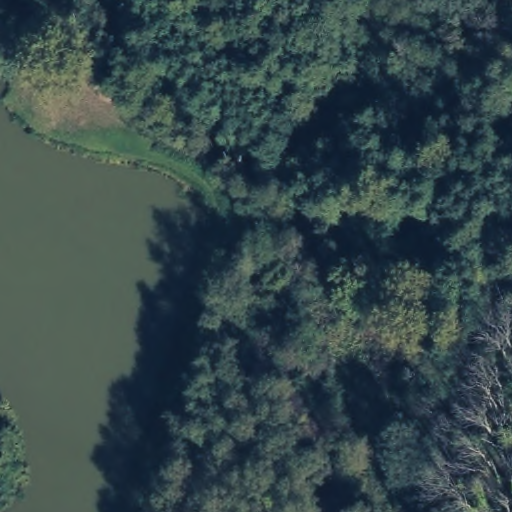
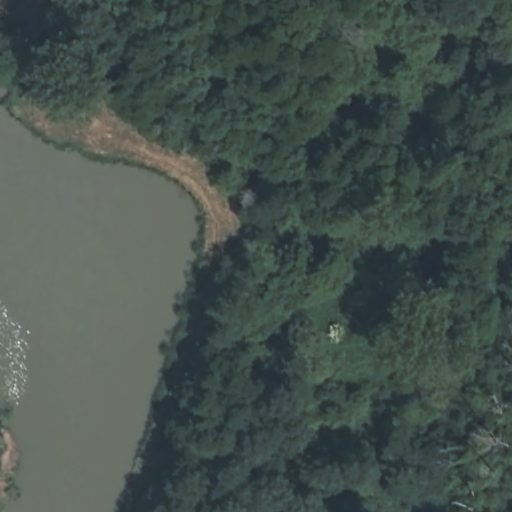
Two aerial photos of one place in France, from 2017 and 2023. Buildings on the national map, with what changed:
unchanged [(60,19),(65,46),(37,50),(30,22),(60,19)]

